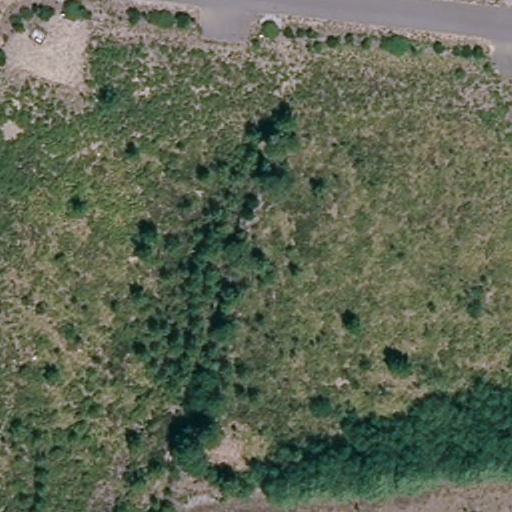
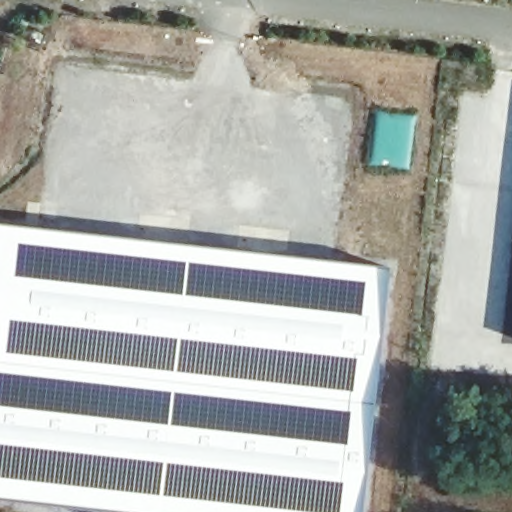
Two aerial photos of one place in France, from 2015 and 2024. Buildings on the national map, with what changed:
new [(362,512),(114,512),(0,500),(0,224),(389,269),(362,512)]

